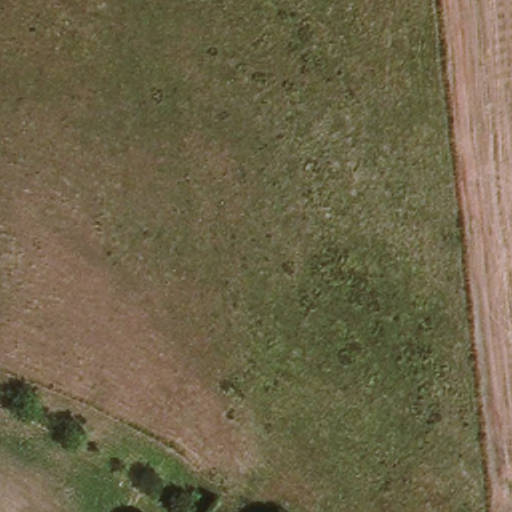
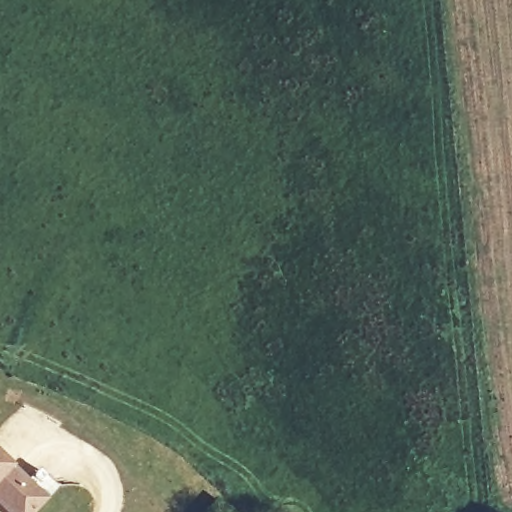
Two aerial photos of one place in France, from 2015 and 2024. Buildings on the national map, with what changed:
new [(34,469),(52,487),(39,500),(38,500),(27,512),(1,512),(0,511),(0,464),(20,483),(34,469)]

